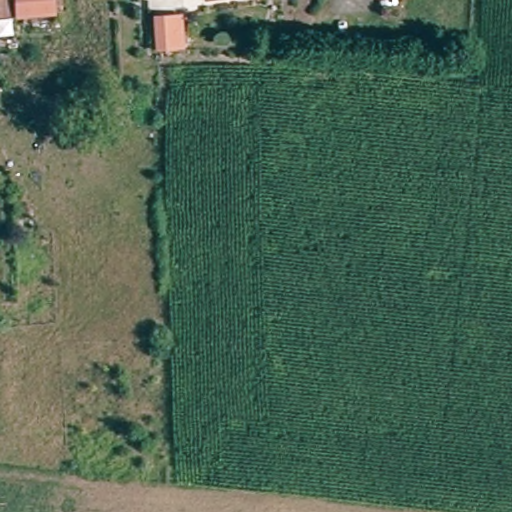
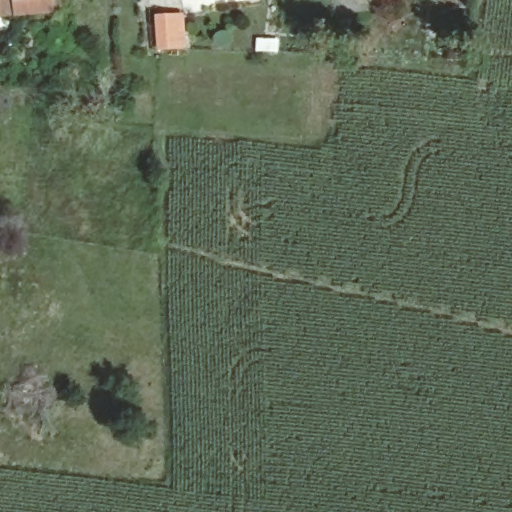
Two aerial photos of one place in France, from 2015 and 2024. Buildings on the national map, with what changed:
unchanged [(60,0),(62,12),(51,13),(18,19),(17,15),(0,17),(0,0),(60,0)]
unchanged [(200,40),(174,44),(171,18),(197,15),(200,40)]

